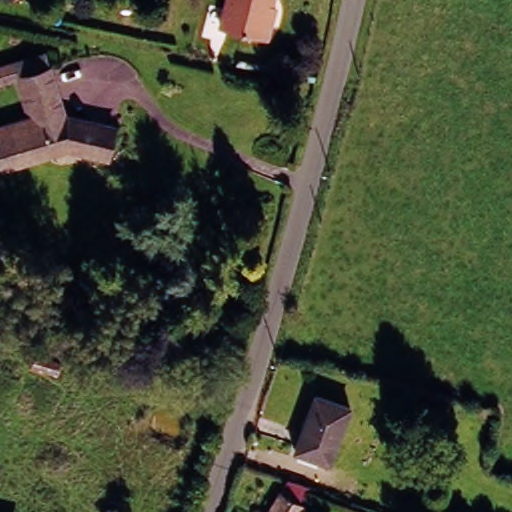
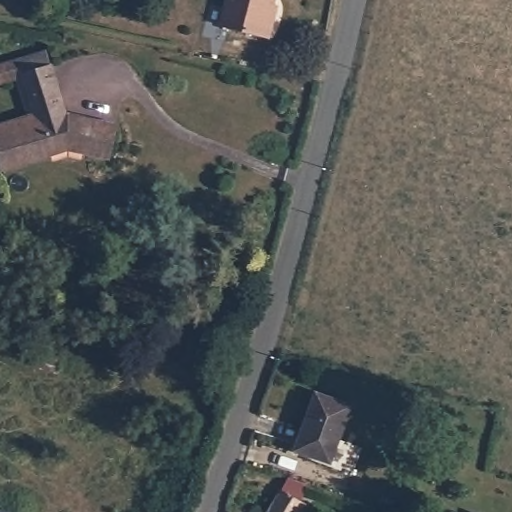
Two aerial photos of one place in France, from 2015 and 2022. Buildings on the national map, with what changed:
unchanged [(267,36),(262,35),(216,25),(221,0),(268,0),(267,5),(273,6),(267,36)]
unchanged [(0,81),(0,61),(49,47),(54,62),(26,71),(39,111),(30,113),(19,76),(0,81)]
unchanged [(5,166),(0,147),(0,123),(30,113),(39,111),(26,71),(54,62),(68,110),(119,122),(112,154),(86,148),(70,144),(54,150),(5,166)]
unchanged [(347,463),(328,456),(327,457),(316,453),(300,447),(294,445),(314,390),(349,402),(335,437),(354,443),(347,463)]
unchanged [(289,498),(300,505),(297,512),(268,512),(287,479),(287,480),(304,486),(300,493),(295,490),(289,498)]
unchanged [(0,512),(0,511),(4,512),(0,512)]

